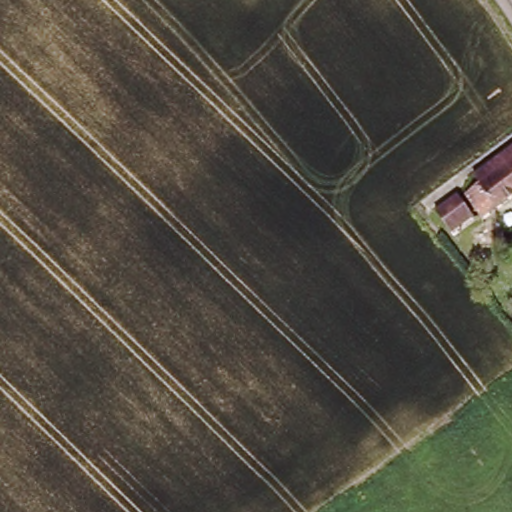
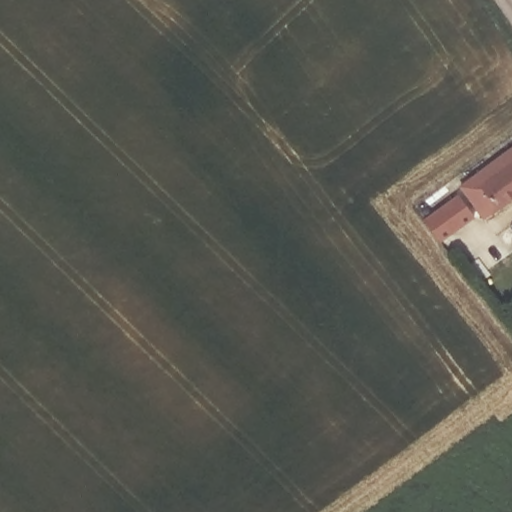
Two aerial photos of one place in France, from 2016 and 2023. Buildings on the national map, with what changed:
unchanged [(502,207),(490,217),(472,194),(485,184),(480,177),(479,176),(512,151),(512,200),(502,207)]
unchanged [(453,206),(466,196),(482,218),(470,227),(463,233),(447,211),(453,206)]

